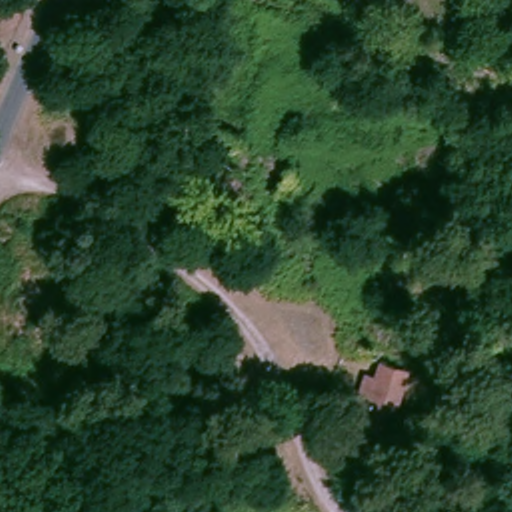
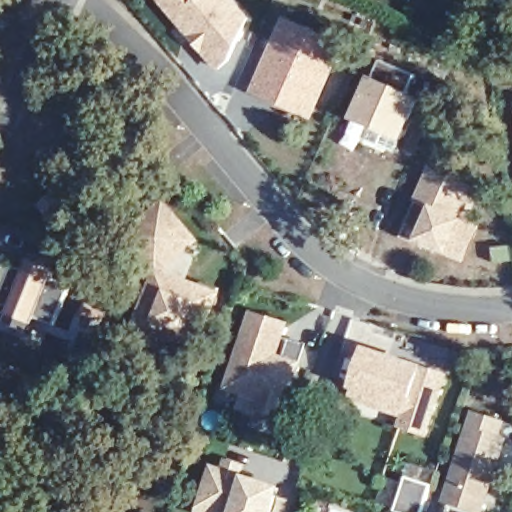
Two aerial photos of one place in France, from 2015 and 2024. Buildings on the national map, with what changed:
new [(251,18),(231,61),(217,72),(157,0),(236,0),(251,18)]
new [(284,16),(344,40),(314,117),(250,94),(284,16)]
new [(415,75),(408,92),(421,98),(403,140),(351,118),(370,74),(374,76),(382,58),(415,75)]
demolished [(234,165),(194,144),(208,114),(253,139),(234,165)]
new [(417,202),(414,201),(429,165),(475,185),(459,215),(466,219),(482,226),(466,263),(445,256),(446,253),(419,242),(418,245),(401,237),(417,202)]
new [(199,243),(189,251),(194,262),(188,281),(222,293),(202,355),(131,333),(149,279),(116,234),(164,198),(199,243)]
new [(0,279),(6,263),(25,270),(29,258),(57,269),(53,281),(69,288),(55,325),(38,319),(35,326),(7,315),(11,306),(0,302),(0,279)]
new [(290,323),(286,337),(307,344),(284,419),(256,412),(259,401),(225,391),(251,311),(290,323)]
new [(398,426),(402,416),(349,397),(350,389),(364,343),(425,364),(450,374),(428,436),(398,426)]
demolished [(386,428),(362,420),(366,408),(356,404),(366,373),(376,377),(381,362),(405,369),(386,428)]
new [(503,436),(508,438),(484,512),(475,512),(443,502),(473,411),(507,421),(503,436)]
new [(194,512),(212,464),(222,467),(225,457),(247,464),(244,474),(282,485),(273,512),(194,512)]

